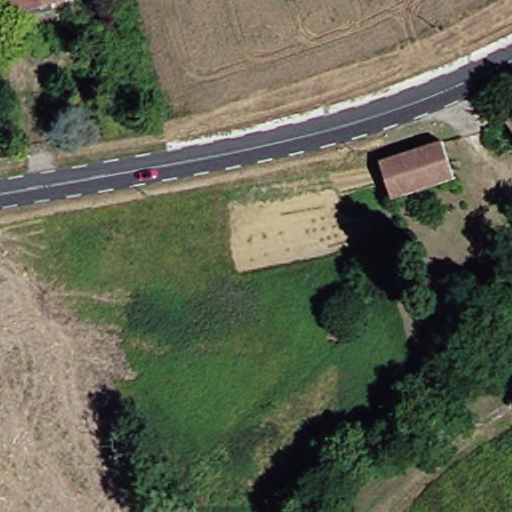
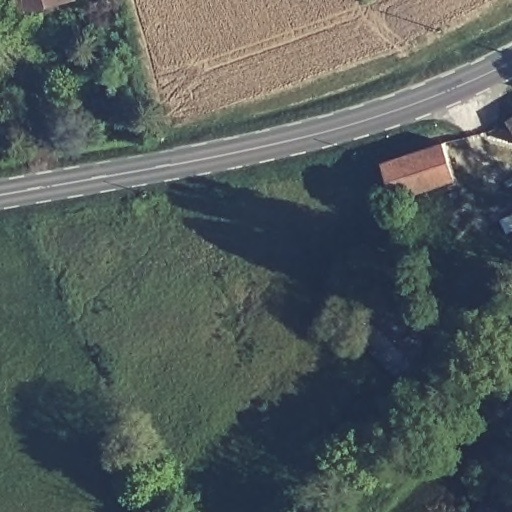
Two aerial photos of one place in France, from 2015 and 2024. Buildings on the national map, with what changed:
unchanged [(20,10),(18,0),(60,0),(20,10)]
unchanged [(453,177),(394,200),(380,166),(440,143),(453,177)]

